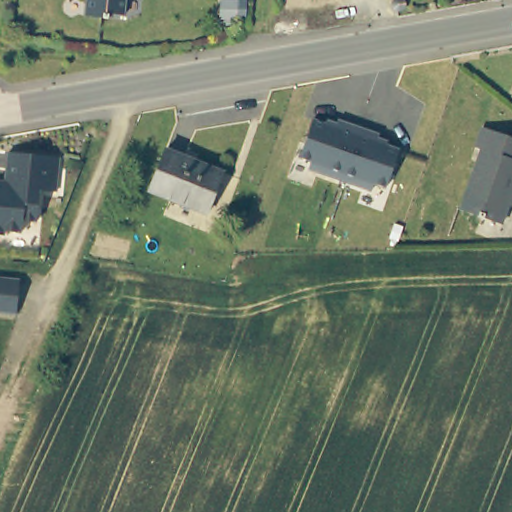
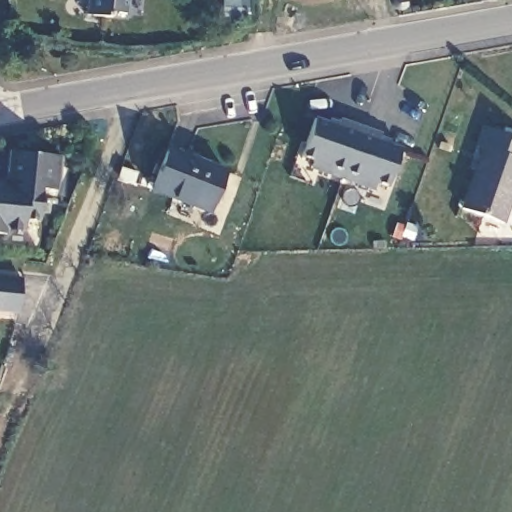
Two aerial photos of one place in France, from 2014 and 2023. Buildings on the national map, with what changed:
unchanged [(120,13),(109,12),(102,17),(78,15),(80,0),(121,0),(120,13)]
unchanged [(332,130),(335,122),(355,129),(376,136),(373,143),(396,151),(383,189),(372,185),(369,192),(337,182),(306,171),(308,164),(297,160),(310,122),(332,130)]
unchanged [(512,198),(504,225),(462,211),(482,147),(477,146),(482,124),(512,134),(512,198)]
unchanged [(227,161),(210,201),(152,177),(170,136),(227,161)]
unchanged [(32,219),(19,217),(17,229),(0,228),(0,182),(2,182),(6,149),(53,155),(57,155),(52,190),(49,189),(37,188),(32,219)]
unchanged [(19,277),(14,311),(0,309),(0,274),(19,277)]

